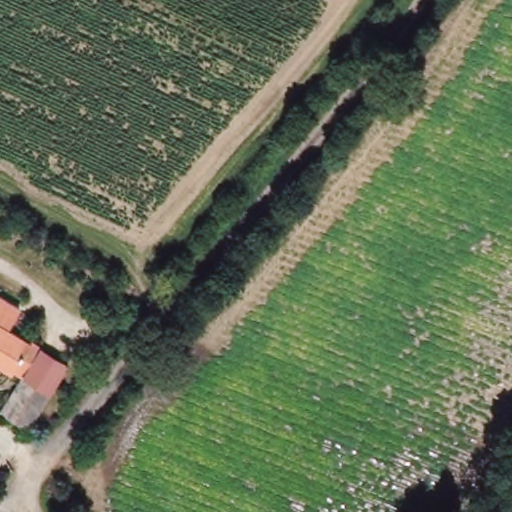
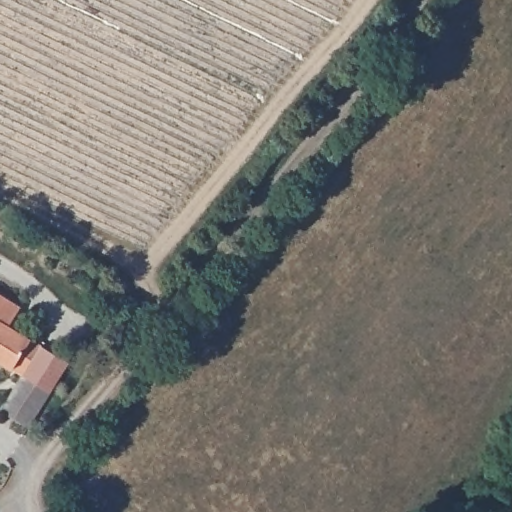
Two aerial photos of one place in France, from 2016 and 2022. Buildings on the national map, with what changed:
unchanged [(25,332),(45,346),(22,378),(0,364),(0,295),(34,318),(25,332)]
unchanged [(45,346),(77,367),(55,400),(22,378),(45,346)]
unchanged [(32,433),(0,412),(0,411),(22,378),(55,400),(32,433)]

